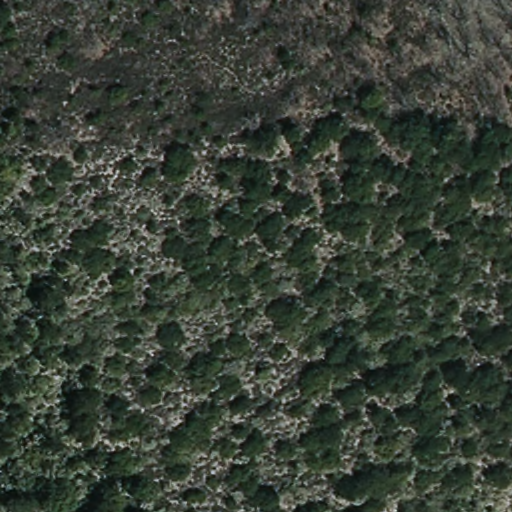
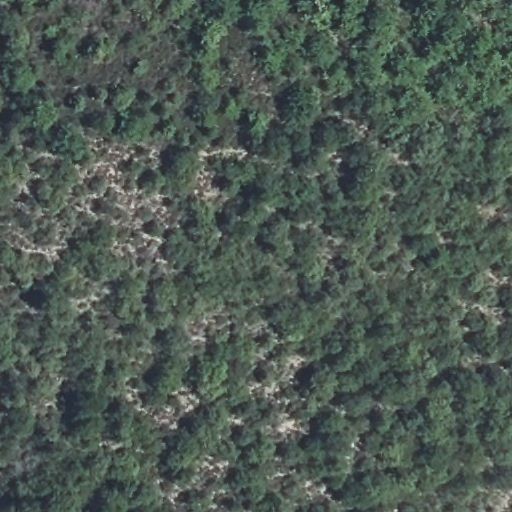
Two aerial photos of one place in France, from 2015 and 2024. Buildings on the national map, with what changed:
[]

